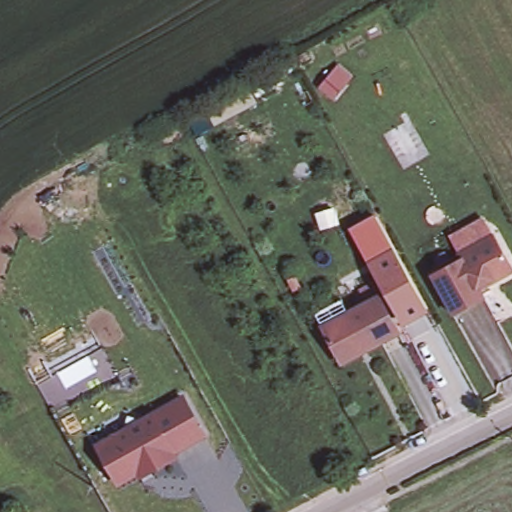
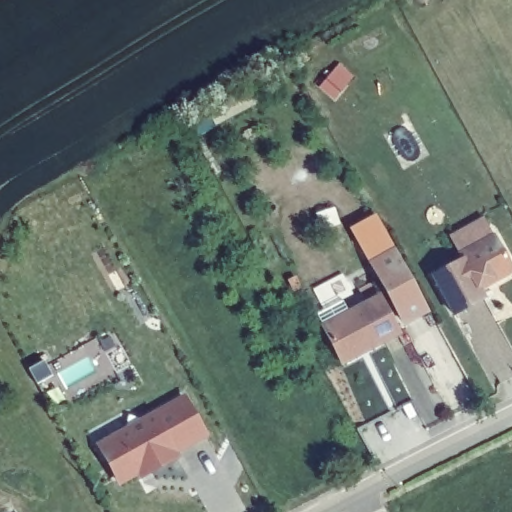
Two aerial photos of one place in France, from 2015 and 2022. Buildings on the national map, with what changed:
unchanged [(276,75),(282,88),(258,102),(251,89),(276,75)]
unchanged [(332,78),(345,88),(332,102),(320,91),(332,78)]
unchanged [(250,91),(259,109),(215,131),(206,114),(250,91)]
unchanged [(460,260),(457,256),(493,237),(512,273),(491,284),(490,281),(476,288),(482,300),(452,315),(430,275),(460,260)]
unchanged [(398,334),(341,365),(322,330),(314,316),(340,302),(347,316),(380,299),(398,334)]
unchanged [(126,427),(129,413),(143,417),(182,394),(203,430),(172,448),(175,453),(140,472),(139,468),(119,478),(99,442),(126,427)]

